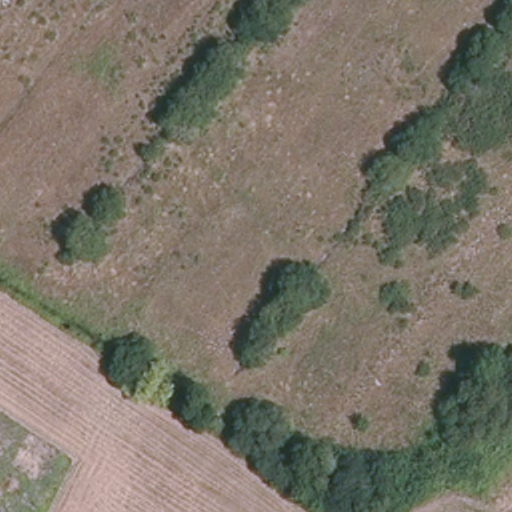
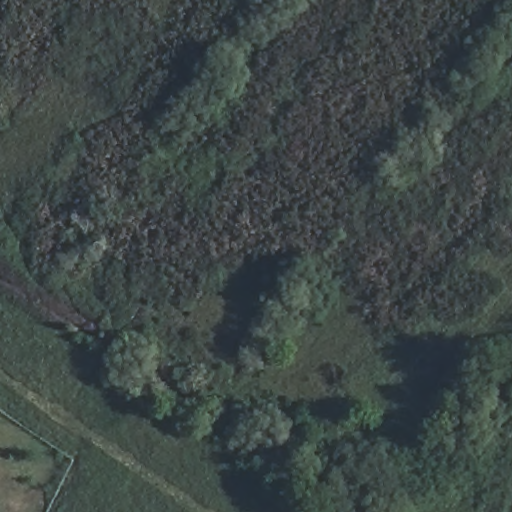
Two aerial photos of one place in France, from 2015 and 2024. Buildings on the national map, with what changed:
[]

